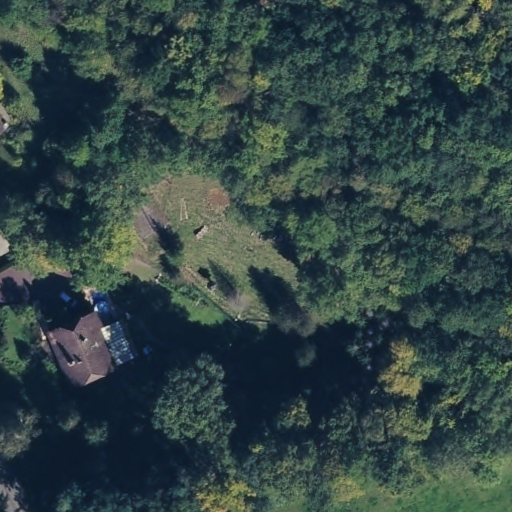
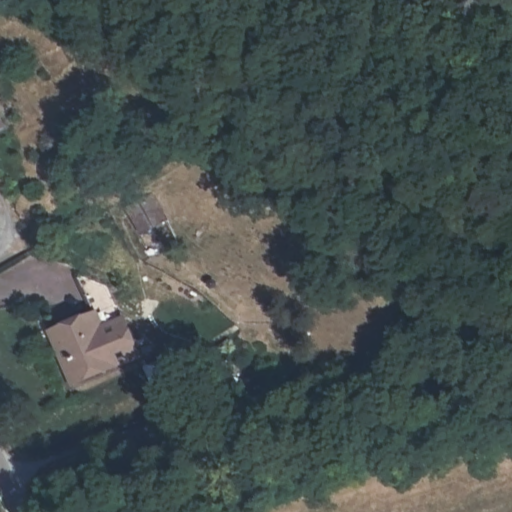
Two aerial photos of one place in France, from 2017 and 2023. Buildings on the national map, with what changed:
unchanged [(0,122),(0,113),(3,121),(0,122)]
unchanged [(134,192),(145,211),(125,223),(114,204),(134,192)]
unchanged [(56,359),(42,329),(83,310),(90,325),(110,316),(126,352),(107,361),(108,361),(70,377),(65,380),(56,359)]
unchanged [(280,310),(289,318),(280,329),(270,321),(280,310)]

